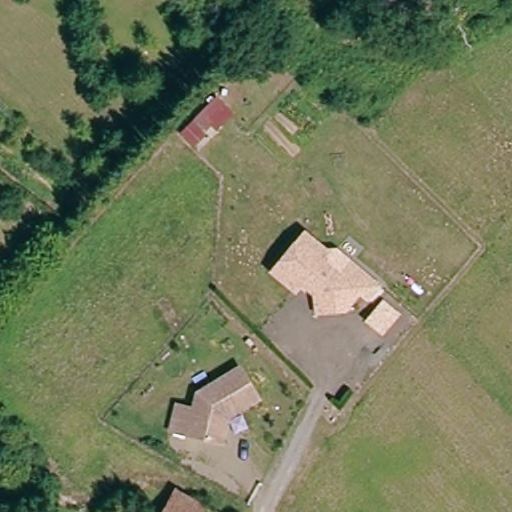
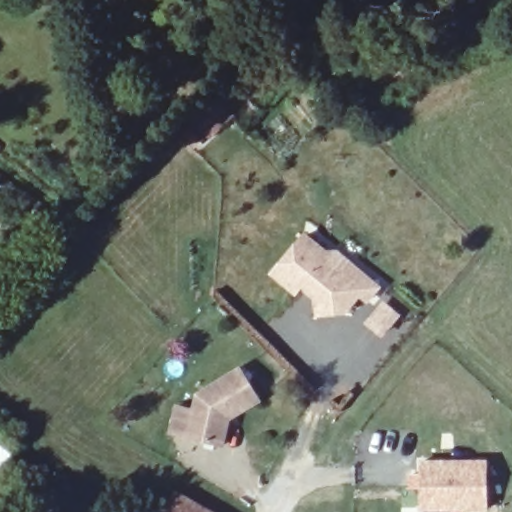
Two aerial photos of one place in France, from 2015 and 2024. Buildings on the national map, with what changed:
new [(235,117),(218,133),(214,128),(193,149),(179,133),(216,96),(235,117)]
unchanged [(305,283),(299,290),(277,272),(307,234),(328,251),(330,263),(344,274),(354,261),(383,285),(371,297),(363,291),(348,310),(321,311),(320,294),(305,283)]
unchanged [(191,409),(188,394),(230,367),(254,401),(224,417),(215,448),(162,431),(171,403),(191,409)]
new [(487,459),(488,510),(421,512),(419,459),(487,459)]
unchanged [(172,488),(214,512),(158,512),(172,488)]

